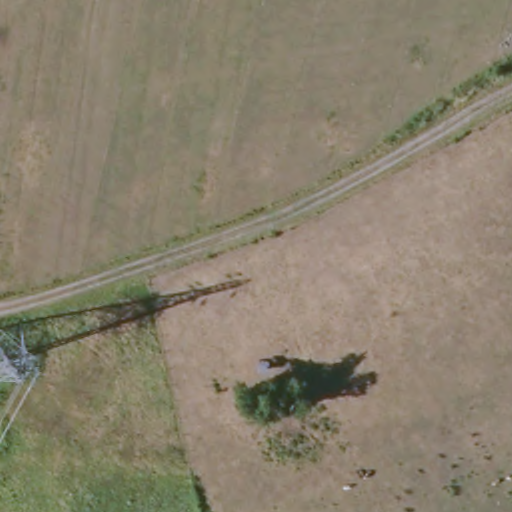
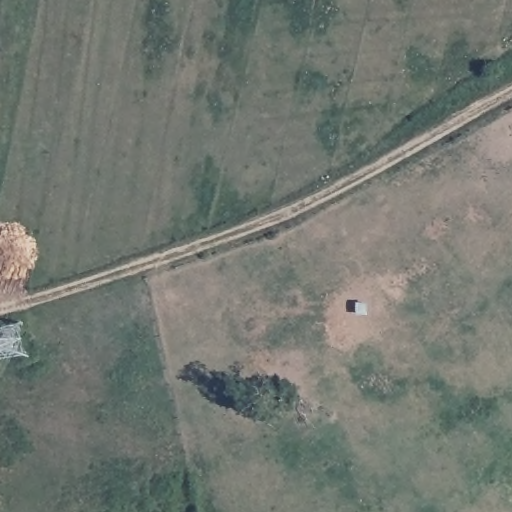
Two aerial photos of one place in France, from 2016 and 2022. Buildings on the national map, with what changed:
[]

